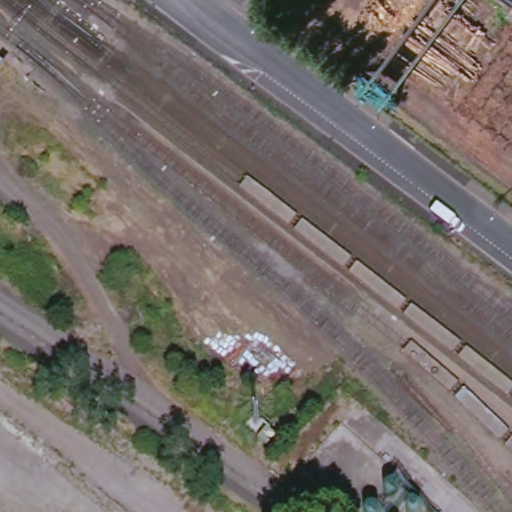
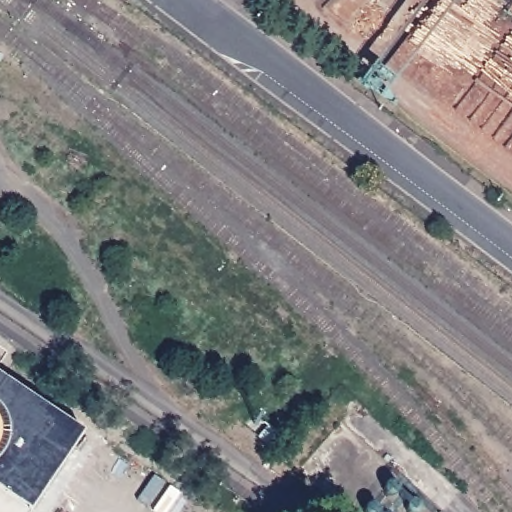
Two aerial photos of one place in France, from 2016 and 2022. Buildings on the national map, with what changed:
new [(31,512),(0,512),(0,370),(86,429),(31,512)]

